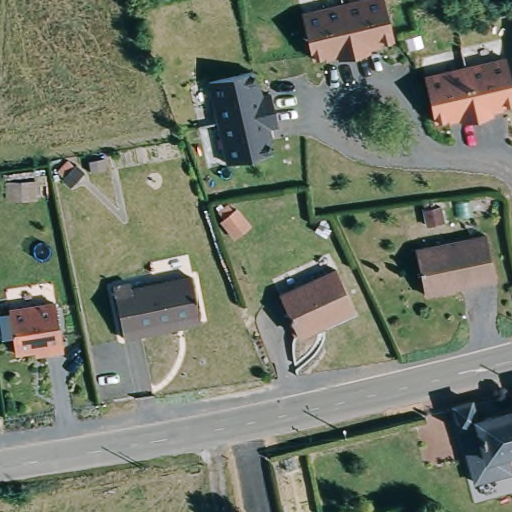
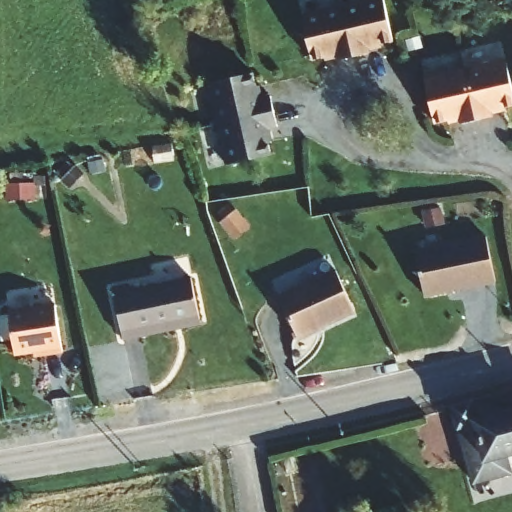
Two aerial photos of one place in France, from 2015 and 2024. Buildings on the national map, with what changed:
unchanged [(358,0),(384,0),(395,43),(370,49),(370,54),(337,62),(335,57),(312,63),(301,13),(358,0)]
unchanged [(505,56),(512,83),(512,108),(494,113),(495,115),(458,124),(457,121),(435,125),(422,76),(505,56)]
unchanged [(255,70),(260,95),(271,93),(280,129),(268,132),(273,155),(226,166),(207,83),(255,70)]
unchanged [(485,233),(493,279),(423,292),(415,247),(485,233)]
unchanged [(336,259),(353,304),(294,327),(276,282),(336,259)]
unchanged [(147,281),(148,287),(192,280),(200,321),(155,328),(155,333),(139,335),(131,283),(147,281)]
unchanged [(53,305),(61,351),(43,354),(42,348),(14,353),(7,311),(53,305)]
unchanged [(471,402),(477,420),(487,458),(470,462),(455,406),(471,402)]
unchanged [(487,458),(477,420),(512,412),(512,452),(487,458)]

